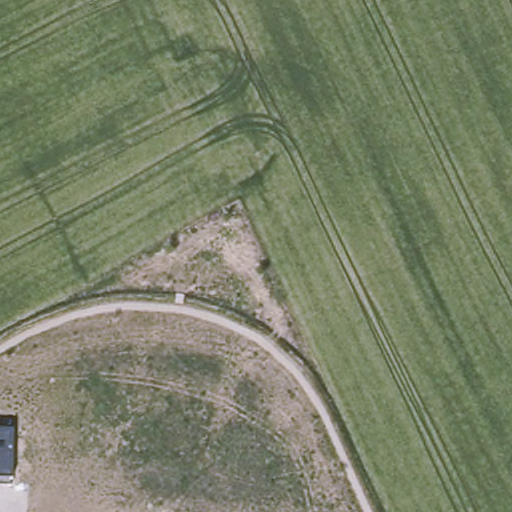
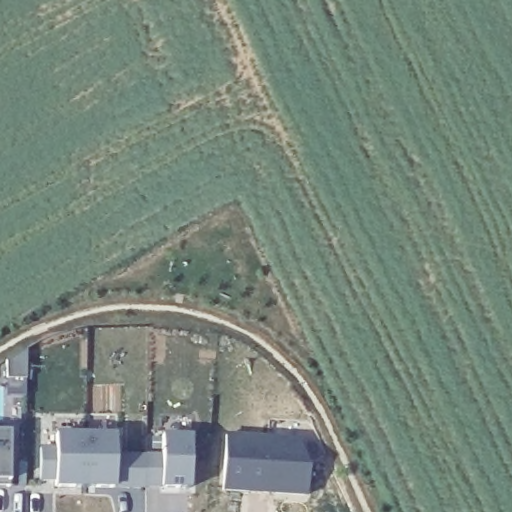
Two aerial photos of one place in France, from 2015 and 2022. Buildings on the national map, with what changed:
unchanged [(10,431),(10,486),(0,485),(0,430),(10,431)]
new [(41,447),(57,447),(57,433),(115,434),(115,453),(162,453),(162,436),(191,436),(191,487),(57,483),(57,480),(40,477),(41,447)]
new [(226,435),(299,440),(308,465),(307,493),(222,487),(226,435)]

